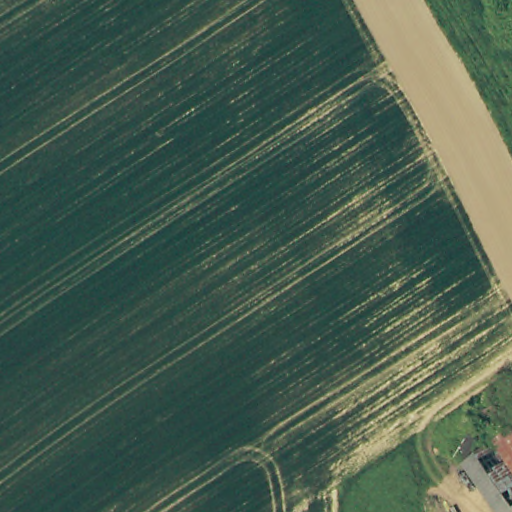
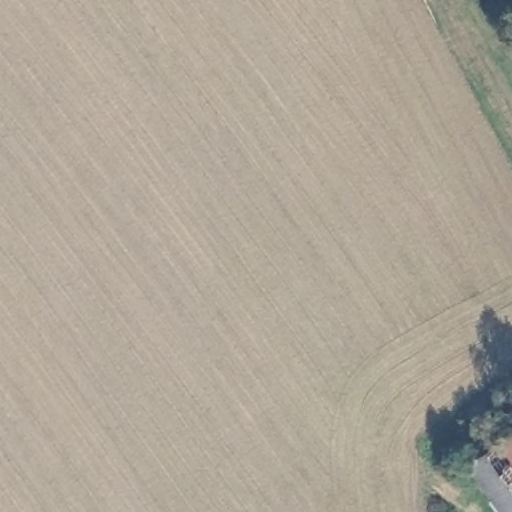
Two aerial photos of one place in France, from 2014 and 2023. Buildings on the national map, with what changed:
unchanged [(505,448),(512,444),(512,458),(505,448)]
unchanged [(512,458),(512,512),(507,512),(476,468),(505,448),(512,458)]

